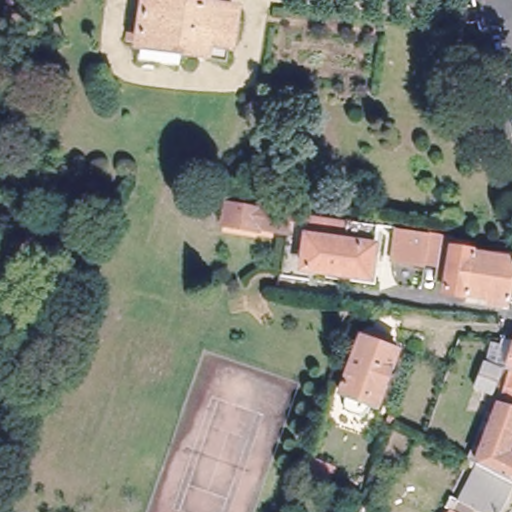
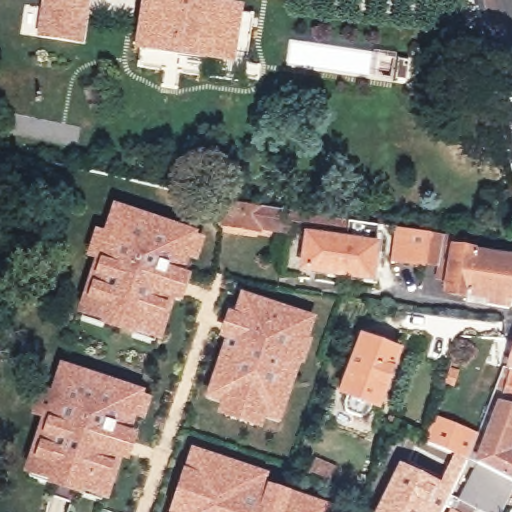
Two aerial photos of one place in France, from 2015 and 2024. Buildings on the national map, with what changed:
new [(35,36),(41,0),(90,0),(84,43),(35,36)]
unchanged [(135,22),(147,24),(150,0),(174,4),(175,0),(192,0),(192,6),(238,13),(232,60),(144,47),(132,45),(135,22)]
new [(207,231),(196,260),(189,256),(184,271),(192,275),(181,306),(174,304),(160,341),(76,311),(96,258),(84,253),(95,223),(105,226),(114,200),(207,231)]
unchanged [(295,230),(294,235),(271,232),(270,235),(230,229),(231,225),(234,205),(269,210),(298,215),(315,217),(314,233),(295,230)]
unchanged [(453,295),(454,283),(447,282),(449,269),(432,267),(432,270),(401,265),(405,235),(436,240),(460,244),(459,253),(481,256),(475,298),(453,295)]
unchanged [(382,249),(378,278),(312,268),(315,239),(382,249)]
unchanged [(512,260),(512,312),(474,307),(475,298),(481,256),(512,260)]
new [(315,315),(309,333),(314,334),(303,365),(298,364),(279,423),(264,419),(261,428),(216,415),(220,402),(204,398),(224,338),(221,336),(230,307),(235,308),(240,290),(315,315)]
unchanged [(380,326),(396,332),(393,342),(401,345),(382,400),(377,399),(367,410),(354,405),(351,390),(345,387),(364,332),(377,336),(380,326)]
new [(151,394),(144,417),(137,415),(129,433),(137,435),(129,463),(119,460),(106,501),(22,475),(42,420),(29,412),(38,387),(51,393),(61,361),(151,394)]
unchanged [(488,463),(480,460),(479,458),(502,394),(484,387),(494,361),(511,367),(512,366),(512,476),(488,463)]
new [(441,483),(454,454),(421,438),(431,412),(479,432),(468,460),(442,512),(376,512),(399,464),(441,483)]
new [(269,470),(266,483),(333,505),(331,512),(171,512),(192,447),(269,470)]
unchanged [(507,512),(492,512),(483,509),(481,512),(464,512),(463,511),(488,463),(512,476),(512,502),(507,512)]
unchanged [(463,511),(464,512),(453,512),(456,507),(463,511)]

